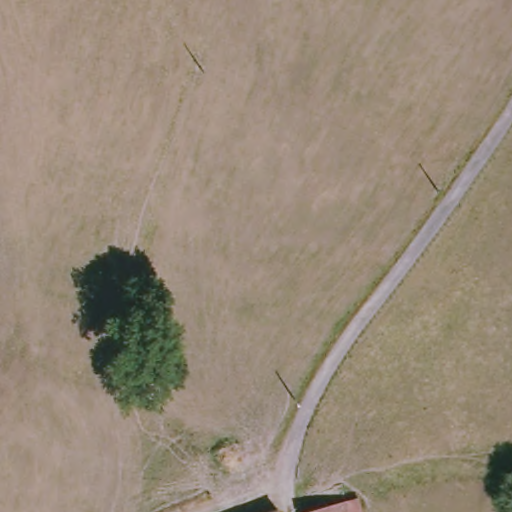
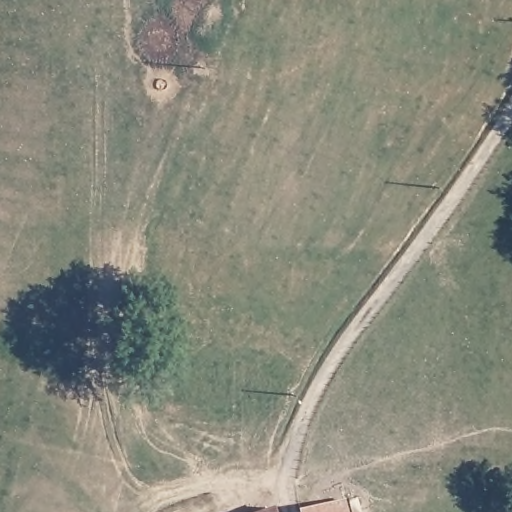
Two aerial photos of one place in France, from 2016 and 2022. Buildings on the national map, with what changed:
unchanged [(301,511),(342,498),(346,512),(301,512),(301,511)]
unchanged [(359,510),(360,512),(352,512),(359,510)]

